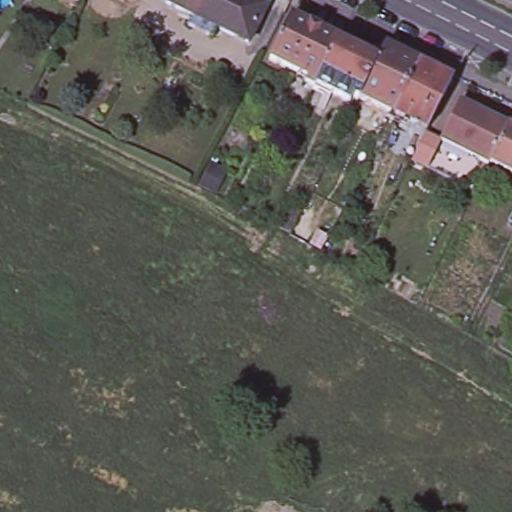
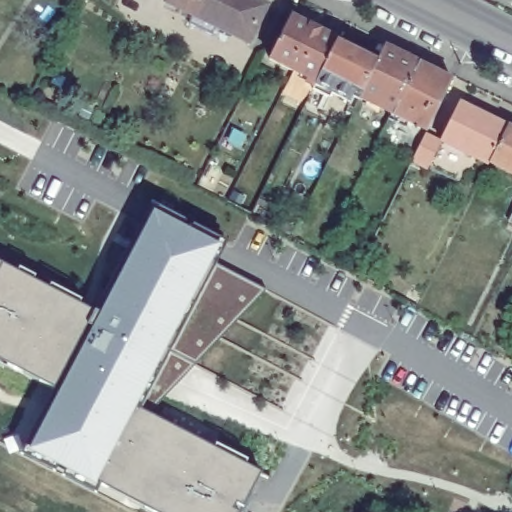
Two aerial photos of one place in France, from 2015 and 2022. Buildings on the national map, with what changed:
new [(74,0),(77,0),(77,1),(74,0)]
unchanged [(259,0),(265,3),(248,39),(215,22),(214,24),(193,11),(173,0),(259,0)]
unchanged [(313,84),(305,79),(308,74),(270,55),(290,14),(337,36),(313,84)]
unchanged [(349,98),(321,84),(319,87),(313,84),(337,36),(378,56),(359,93),(358,95),(352,92),(349,98)]
unchanged [(378,56),(385,42),(415,58),(389,108),(359,93),(378,56)]
unchanged [(416,122),(396,111),(392,118),(386,114),(389,108),(415,58),(451,76),(441,96),(425,127),(416,122)]
unchanged [(438,137),(458,99),(506,124),(488,160),(487,162),(438,137)]
unchanged [(488,160),(506,124),(512,128),(512,173),(488,160)]
unchanged [(438,137),(429,154),(416,146),(424,129),(438,137)]
new [(227,241),(214,265),(265,290),(143,413),(211,448),(214,443),(247,460),(244,464),(259,472),(242,506),(235,503),(232,510),(235,512),(152,512),(99,483),(94,493),(60,475),(63,469),(54,465),(53,471),(20,454),(53,388),(6,364),(4,367),(0,366),(0,264),(15,271),(18,267),(36,276),(33,281),(47,287),(49,283),(81,299),(78,304),(94,311),(151,203),(227,241)]

